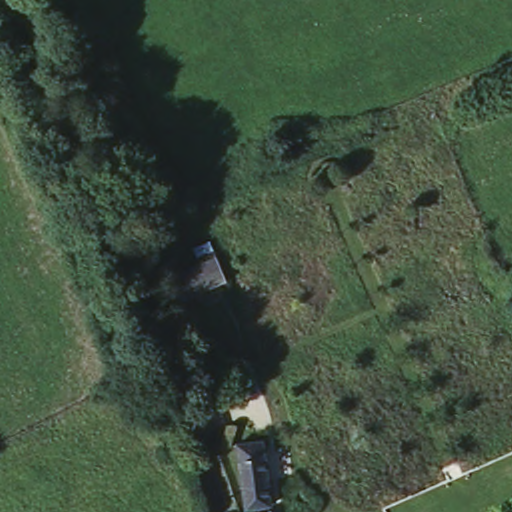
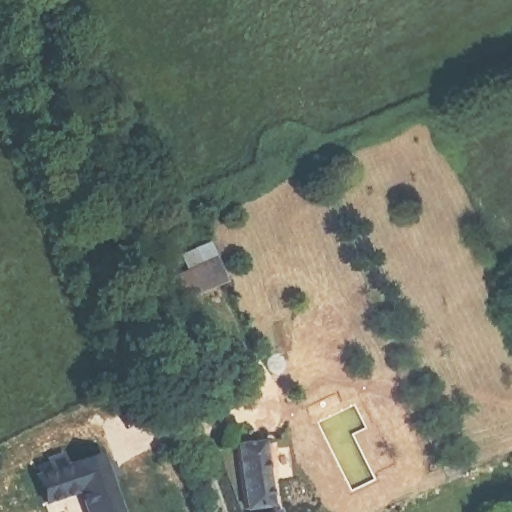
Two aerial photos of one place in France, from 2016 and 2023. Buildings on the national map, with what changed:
unchanged [(197,246),(214,239),(220,255),(229,280),(182,297),(172,273),(204,262),(197,246)]
unchanged [(315,300),(299,304),(293,288),(309,283),(315,300)]
unchanged [(269,440),(273,505),(247,508),(242,443),(269,440)]
new [(67,464),(105,449),(130,512),(82,512),(73,491),(44,502),(30,468),(63,453),(67,464)]

